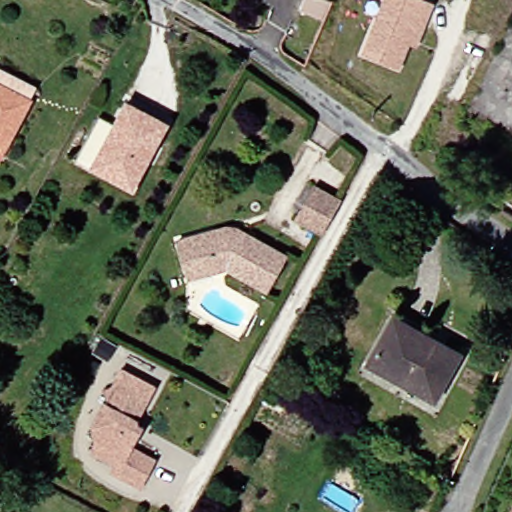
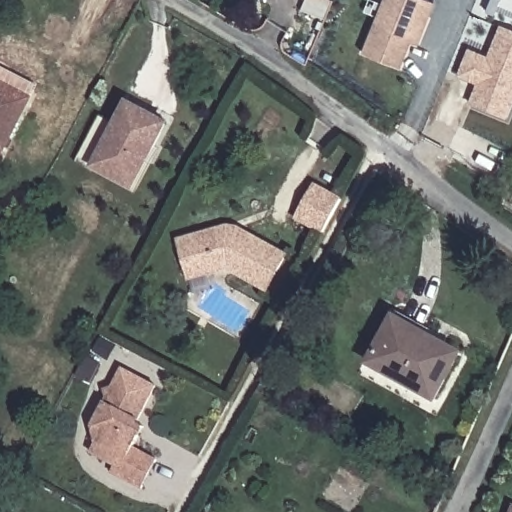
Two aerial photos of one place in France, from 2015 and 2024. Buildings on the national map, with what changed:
unchanged [(307,8),(310,0),(337,0),(329,17),(307,8)]
unchanged [(415,32),(399,65),(364,51),(386,0),(437,0),(425,28),(415,32)]
new [(506,120),(468,104),(476,85),(458,77),(469,48),(489,56),(500,25),(512,30),(512,108),(506,120)]
unchanged [(0,63),(38,83),(31,97),(0,81),(0,63)]
unchanged [(6,143),(0,156),(0,81),(31,97),(6,143)]
unchanged [(151,169),(146,166),(132,191),(83,165),(104,126),(121,135),(134,112),(172,131),(151,169)]
unchanged [(324,232),(299,218),(317,187),(341,200),(324,232)]
unchanged [(271,294),(233,273),(231,269),(193,279),(185,248),(222,238),(225,247),(241,244),(245,245),(249,247),(254,238),(292,259),(271,294)]
unchanged [(460,351),(435,398),(370,361),(395,316),(460,351)]
unchanged [(100,439),(97,422),(111,395),(108,388),(117,385),(126,367),(160,385),(143,414),(146,422),(151,425),(146,434),(140,445),(162,458),(148,485),(117,468),(120,463),(95,449),(100,439)]

